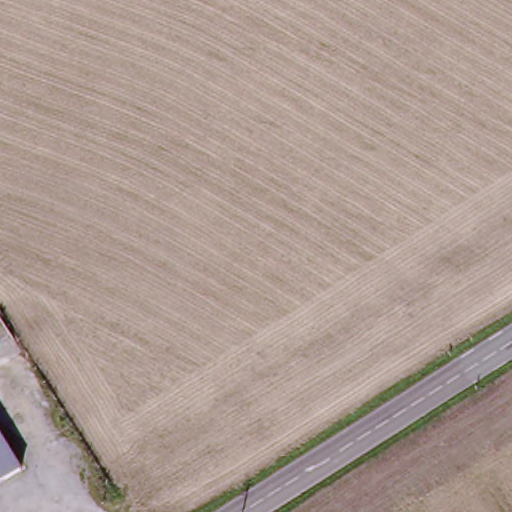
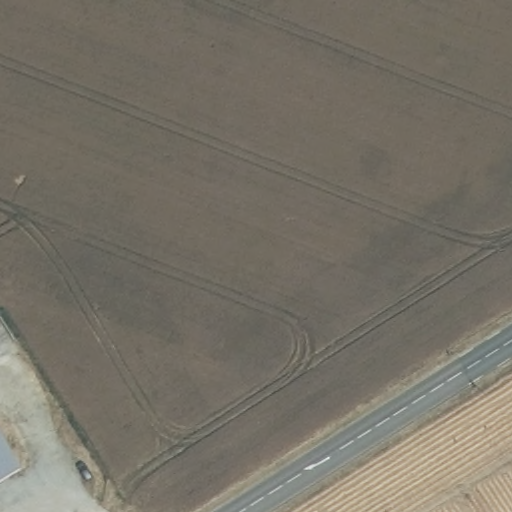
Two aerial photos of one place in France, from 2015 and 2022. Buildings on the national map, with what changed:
unchanged [(0,436),(19,466),(0,478),(0,436)]

